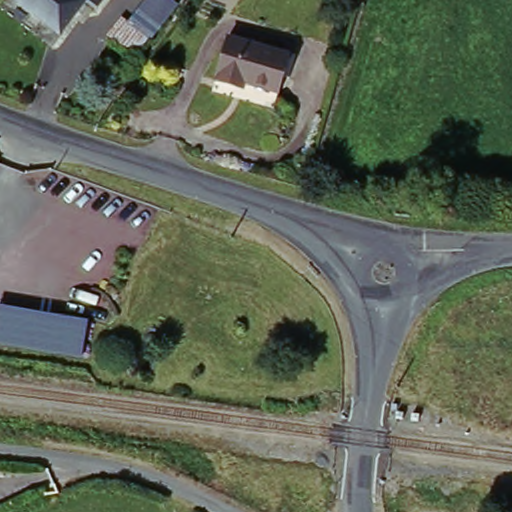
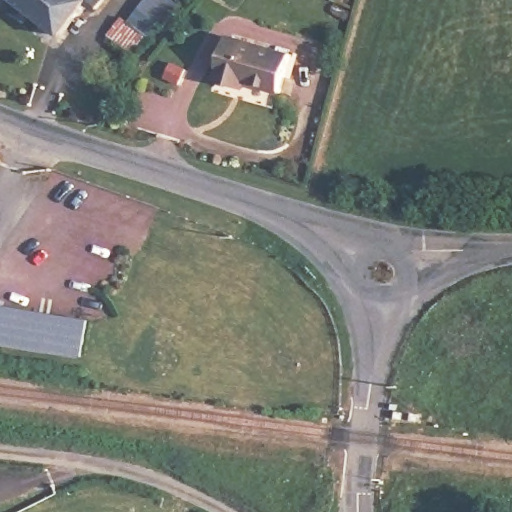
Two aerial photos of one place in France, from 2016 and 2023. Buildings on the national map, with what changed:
unchanged [(87,6),(59,38),(16,0),(108,0),(97,14),(87,6)]
unchanged [(149,0),(165,0),(181,12),(163,33),(139,14),(149,0)]
unchanged [(152,29),(146,36),(136,29),(142,20),(152,29)]
unchanged [(141,44),(130,58),(107,38),(119,24),(141,44)]
unchanged [(241,85),(217,80),(229,34),(291,49),(282,87),(250,79),(246,86),(241,85)]
unchanged [(87,349),(0,341),(0,303),(91,312),(87,349)]

